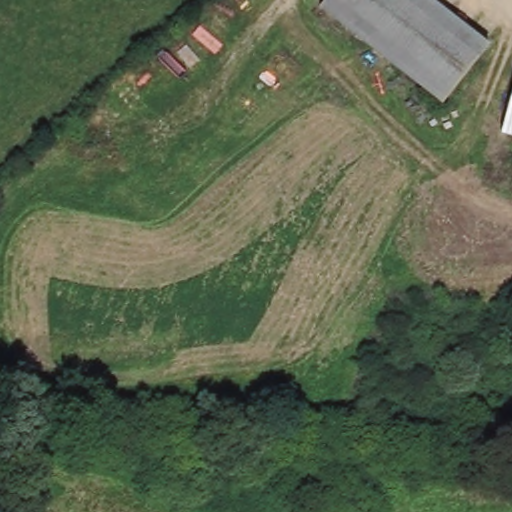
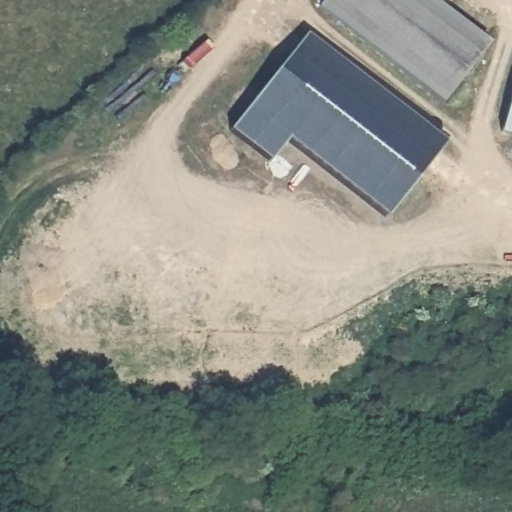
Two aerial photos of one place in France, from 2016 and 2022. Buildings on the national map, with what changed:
unchanged [(455,111),(309,6),(314,0),(429,0),(499,50),(455,111)]
new [(326,42),(469,144),(416,220),(314,147),(298,169),(256,139),(326,42)]
unchanged [(512,89),(512,142),(498,138),(512,89)]

